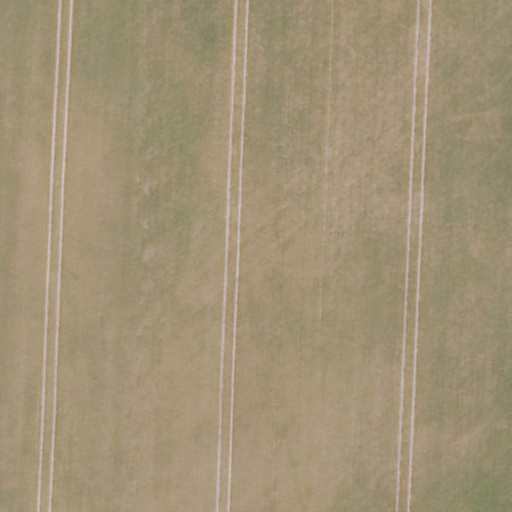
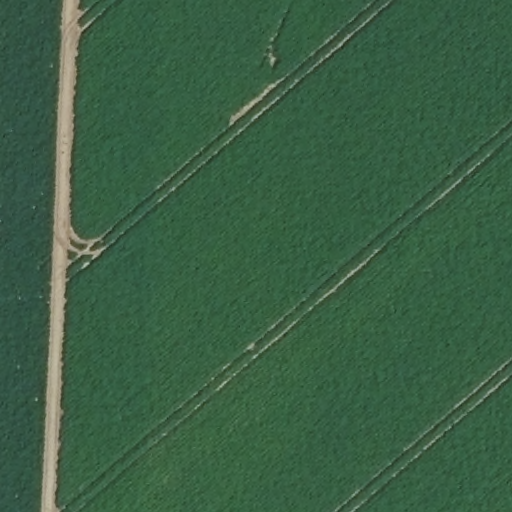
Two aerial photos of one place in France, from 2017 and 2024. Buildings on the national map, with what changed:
[]

